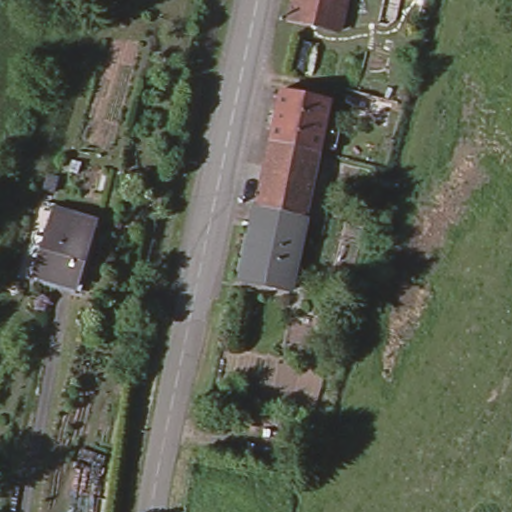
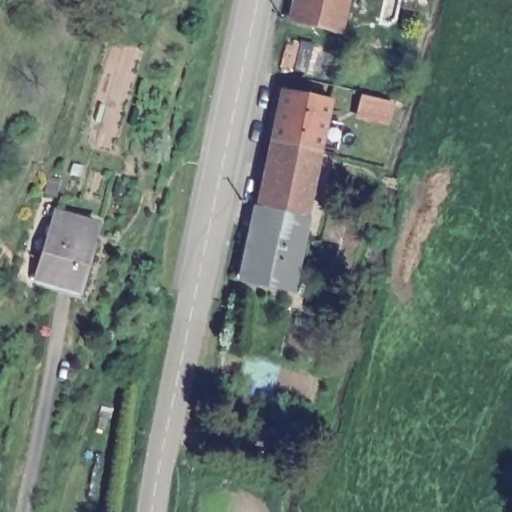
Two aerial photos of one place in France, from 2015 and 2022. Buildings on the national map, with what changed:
unchanged [(345,1),(338,32),(289,21),(294,0),(343,0),(345,1)]
unchanged [(345,1),(343,0),(345,0),(345,1)]
unchanged [(281,90),(330,101),(320,153),(270,143),(281,90)]
unchanged [(392,104),(387,124),(358,117),(362,97),(392,104)]
unchanged [(320,153),(315,177),(265,166),(270,143),(320,153)]
unchanged [(315,177),(307,215),(257,205),(265,166),(315,177)]
unchanged [(307,215),(290,291),(240,280),(257,205),(307,215)]
unchanged [(96,225),(87,257),(84,258),(82,266),(83,268),(76,291),(35,279),(55,212),(96,225)]

